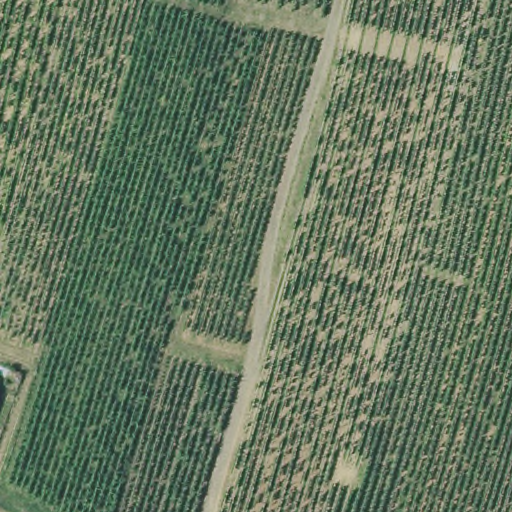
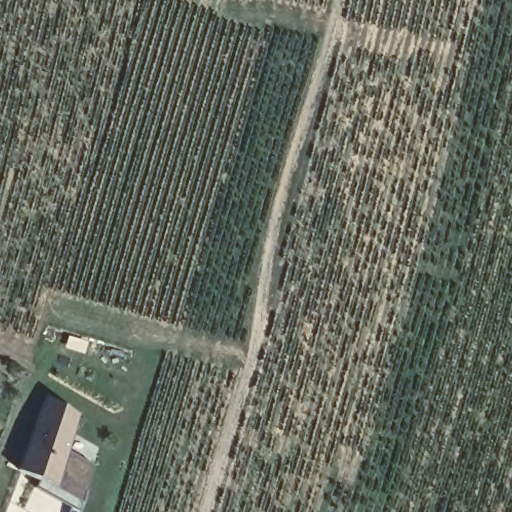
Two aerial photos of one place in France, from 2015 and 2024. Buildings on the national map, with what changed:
new [(80,415),(58,487),(21,473),(46,399),(80,415)]

